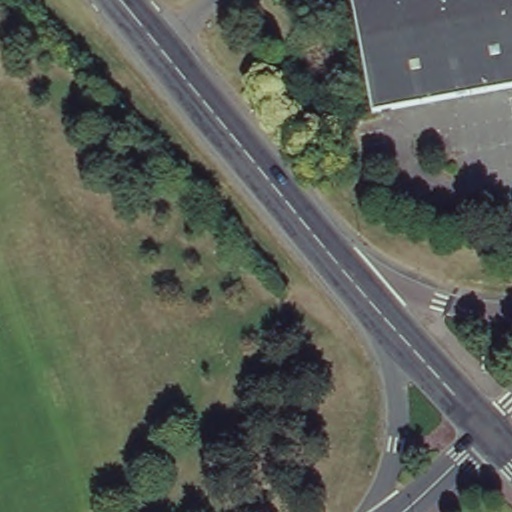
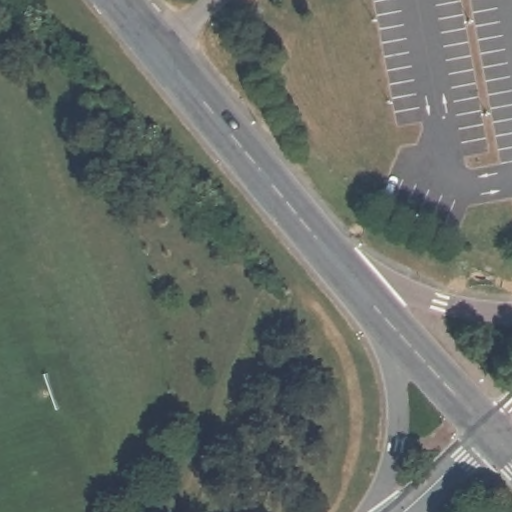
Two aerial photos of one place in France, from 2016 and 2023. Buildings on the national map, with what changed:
demolished [(354,0),(512,0),(512,84),(376,111),(354,0)]

